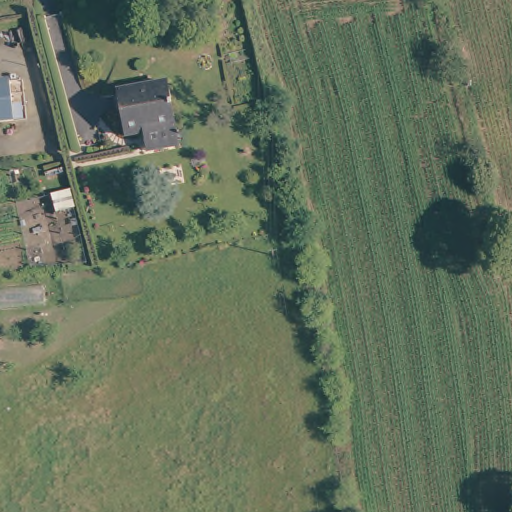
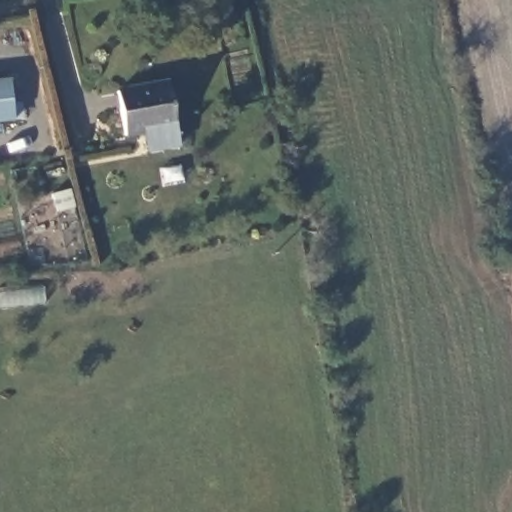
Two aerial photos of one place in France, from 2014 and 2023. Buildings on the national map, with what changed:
unchanged [(0,78),(8,77),(14,116),(0,118),(0,78)]
unchanged [(183,149),(149,154),(146,131),(122,134),(115,87),(172,79),(183,149)]

